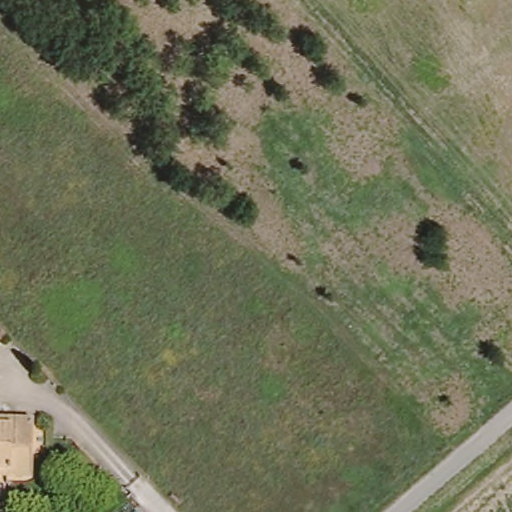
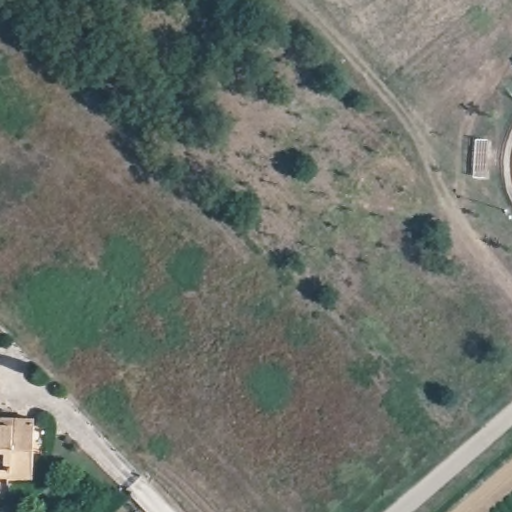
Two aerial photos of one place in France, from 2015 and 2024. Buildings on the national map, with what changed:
unchanged [(33,478),(10,477),(0,477),(0,417),(34,418),(33,478)]

